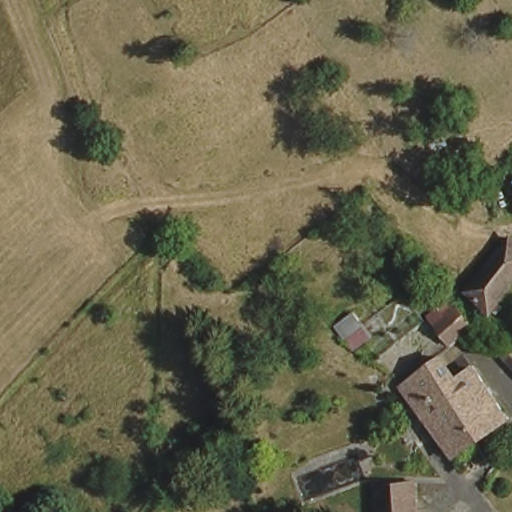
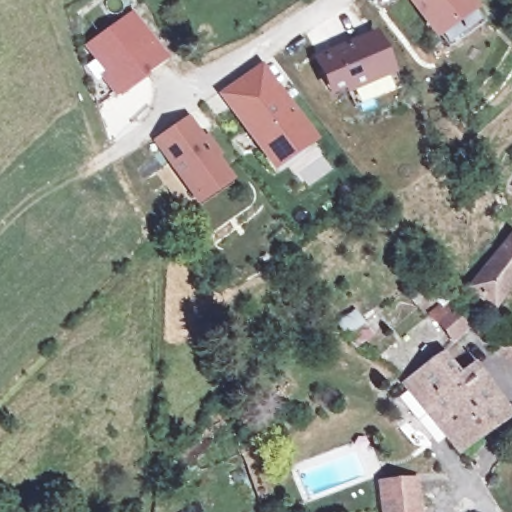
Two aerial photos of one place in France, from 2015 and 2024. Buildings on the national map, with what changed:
new [(407,0),(471,0),(478,10),(434,40),(407,0)]
new [(103,74),(85,45),(132,9),(167,60),(115,99),(100,77),(103,74)]
new [(344,91),(327,97),(312,59),(375,32),(393,75),(345,95),(344,91)]
new [(217,94),(262,62),(317,142),(272,173),(217,94)]
new [(232,181),(195,205),(152,140),(187,116),(202,136),(205,135),(220,157),(217,159),(232,181)]
unchanged [(510,175),(512,173),(512,177),(510,175)]
unchanged [(512,244),(512,275),(487,298),(469,277),(508,241),(512,244)]
unchanged [(430,309),(431,308),(443,304),(449,311),(462,308),(472,332),(443,340),(430,309)]
unchanged [(419,406),(392,376),(459,360),(465,358),(472,385),(500,379),(512,424),(512,433),(451,448),(419,406)]
unchanged [(420,477),(425,512),(388,512),(383,481),(420,477)]

